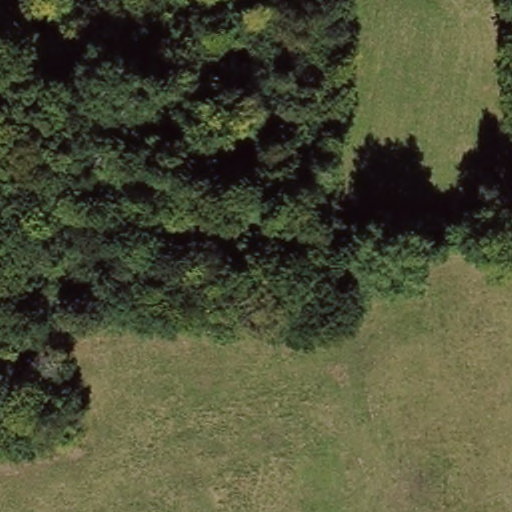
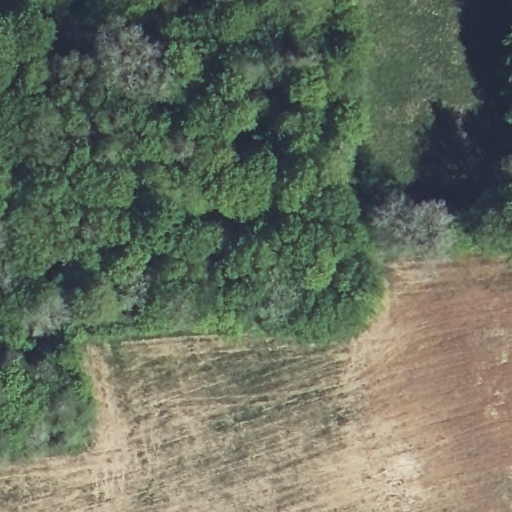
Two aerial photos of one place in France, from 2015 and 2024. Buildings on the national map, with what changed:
[]

